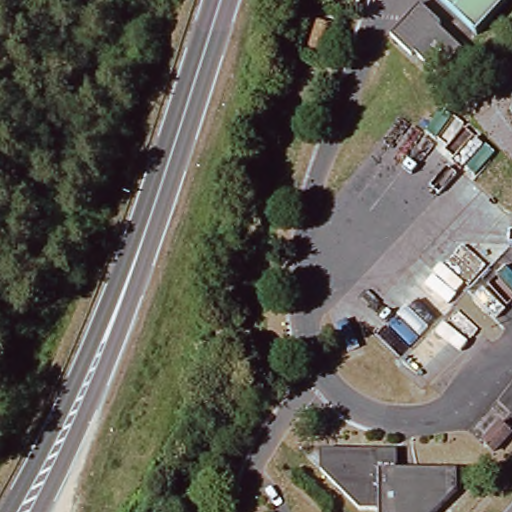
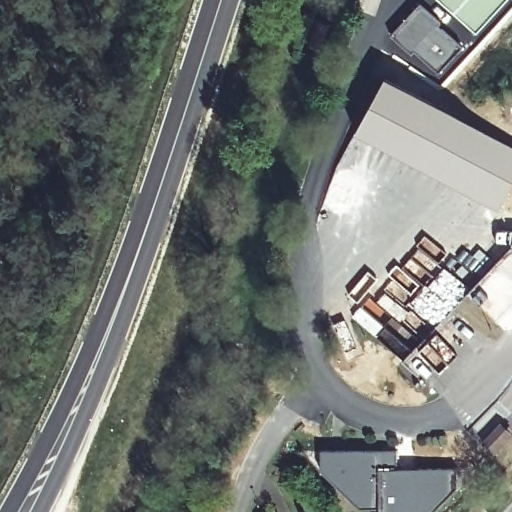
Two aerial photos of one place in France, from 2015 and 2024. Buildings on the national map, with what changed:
unchanged [(439,0),(512,0),(512,6),(484,39),(439,0)]
unchanged [(461,46),(439,71),(415,50),(412,53),(392,36),(419,6),(437,22),(436,25),(461,46)]
new [(377,82),(512,152),(512,177),(494,212),(348,136),(377,82)]
unchanged [(490,445),(504,426),(512,432),(512,454),(507,460),(490,445)]
unchanged [(362,512),(322,476),(323,452),(392,452),(392,467),(455,469),(455,492),(435,512),(380,512),(362,512)]

